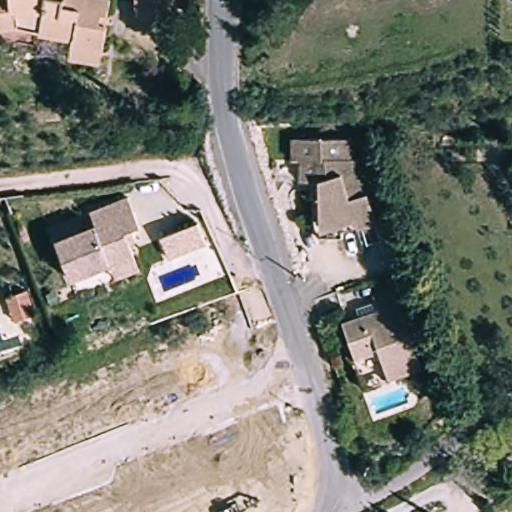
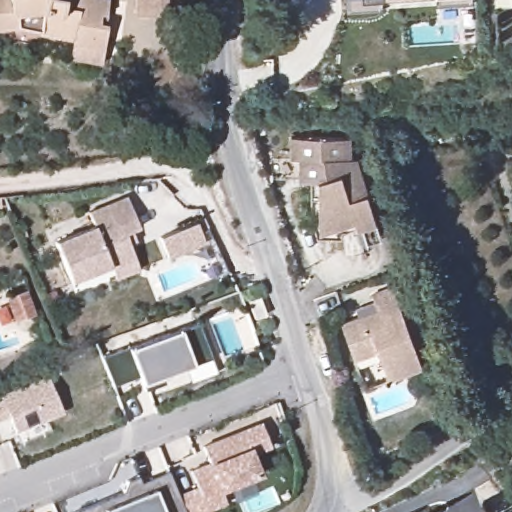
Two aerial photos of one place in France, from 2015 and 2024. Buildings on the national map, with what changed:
unchanged [(108,1),(105,16),(99,15),(98,25),(106,26),(99,64),(68,57),(71,40),(38,34),(38,31),(17,27),(0,29),(0,0),(100,0),(108,1)]
unchanged [(183,7),(167,7),(167,16),(133,15),(134,0),(183,0),(183,7)]
new [(381,2),(382,10),(347,12),(346,0),(400,0),(381,2)]
new [(473,3),(436,5),(436,0),(473,0),(473,3)]
unchanged [(353,136),(354,154),(359,154),(378,216),(346,227),(346,234),(321,234),(316,212),(316,176),(304,176),(304,155),(296,155),(295,136),(353,136)]
unchanged [(115,273),(109,260),(70,275),(55,238),(94,222),(88,208),(127,193),(139,222),(132,225),(135,236),(128,240),(132,250),(138,265),(115,273)]
unchanged [(25,291),(33,315),(15,321),(7,297),(25,291)]
unchanged [(360,313),(379,306),(376,300),(397,292),(426,372),(393,384),(383,356),(358,365),(345,328),(363,322),(360,313)]
new [(180,332),(198,325),(209,357),(190,366),(161,377),(162,382),(144,388),(142,384),(138,375),(112,385),(102,357),(129,349),(180,332)]
new [(15,431),(9,415),(0,418),(0,401),(2,400),(0,397),(49,377),(63,413),(15,431)]
new [(175,495),(196,486),(188,471),(208,463),(201,446),(260,423),(269,446),(252,453),(260,476),(218,491),(224,502),(197,512),(82,512),(167,475),(175,495)]

